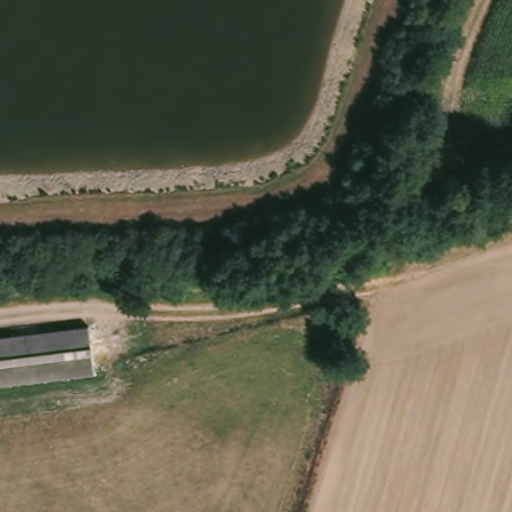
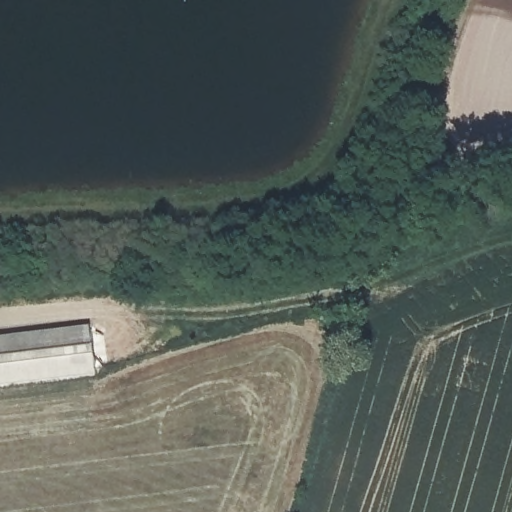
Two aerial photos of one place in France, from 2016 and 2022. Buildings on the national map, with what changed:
unchanged [(78,333),(84,376),(0,386),(0,342),(78,333)]

